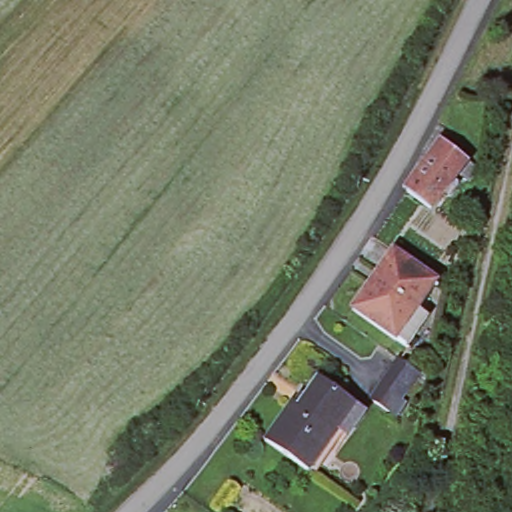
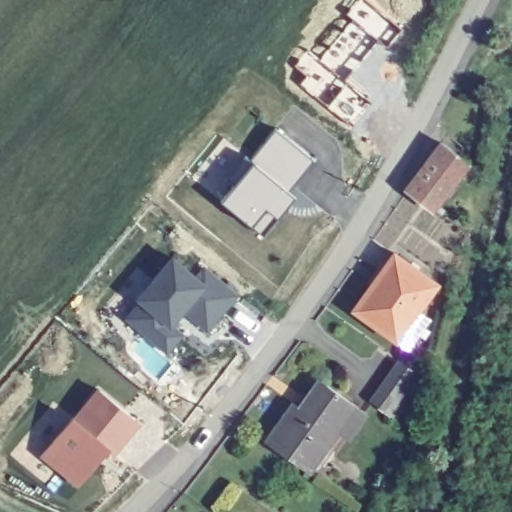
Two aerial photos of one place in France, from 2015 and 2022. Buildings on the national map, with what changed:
unchanged [(443,143),(468,161),(431,209),(407,191),(443,143)]
unchanged [(406,347),(396,340),(353,309),(393,253),(436,283),(417,310),(427,317),(406,347)]
new [(194,273),(204,265),(239,294),(208,332),(186,311),(176,322),(185,334),(167,355),(124,319),(138,300),(134,298),(171,255),(194,273)]
unchanged [(394,360),(409,371),(391,397),(400,404),(391,417),(366,400),(394,360)]
unchanged [(261,441),(288,402),(294,407),(314,379),(350,405),(359,412),(341,439),(337,436),(331,432),(304,471),(261,441)]
new [(141,423),(113,460),(107,451),(78,487),(39,455),(96,387),(141,423)]

